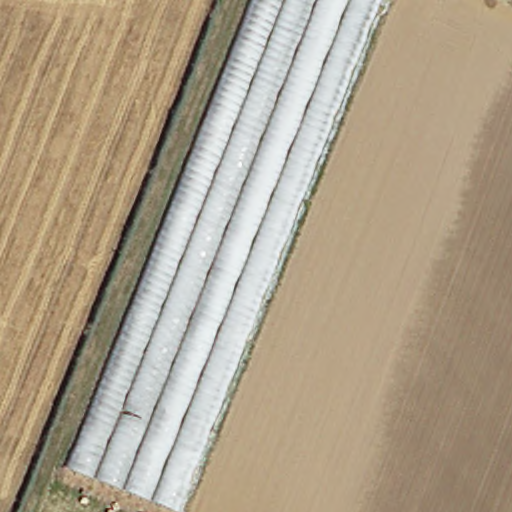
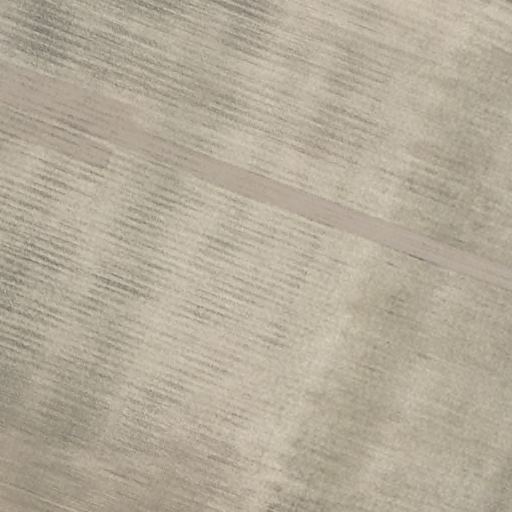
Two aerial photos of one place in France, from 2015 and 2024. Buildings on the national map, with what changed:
demolished [(178,512),(71,469),(258,0),(382,0),(179,512),(178,512)]

